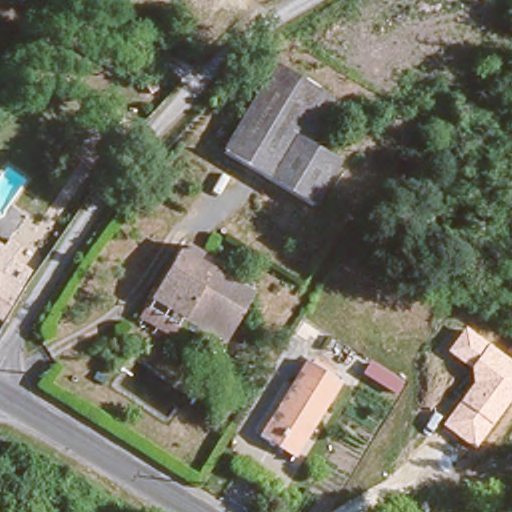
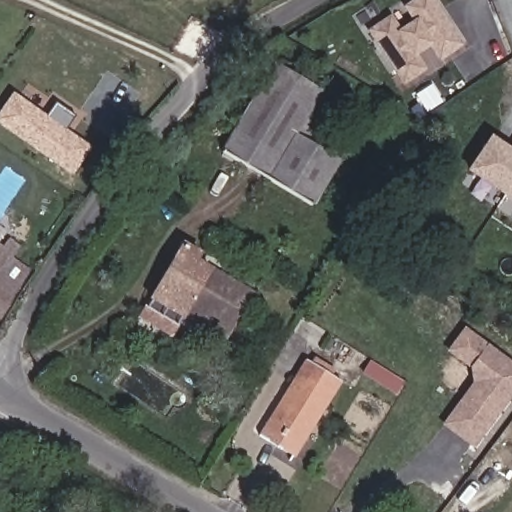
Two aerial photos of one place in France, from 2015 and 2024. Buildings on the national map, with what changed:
new [(399,30),(411,22),(402,7),(414,0),(434,0),(462,46),(438,61),(429,49),(418,56),(426,71),(403,85),(367,32),(391,16),(399,30)]
unchanged [(217,145),(275,58),(317,85),(289,129),(336,159),(306,204),(217,145)]
new [(0,111),(14,92),(48,115),(55,104),(74,117),(65,130),(92,147),(71,177),(0,126),(0,111)]
new [(463,184),(490,140),(510,154),(512,151),(512,216),(463,184)]
unchanged [(4,245),(13,252),(3,271),(18,280),(0,312),(0,250),(1,250),(4,245)]
unchanged [(160,298),(167,286),(187,251),(241,288),(221,321),(214,335),(160,298)]
unchanged [(474,448),(444,423),(472,383),(471,367),(447,350),(464,325),(512,362),(512,396),(474,448)]
unchanged [(265,434),(308,355),(340,374),(298,453),(265,434)]

